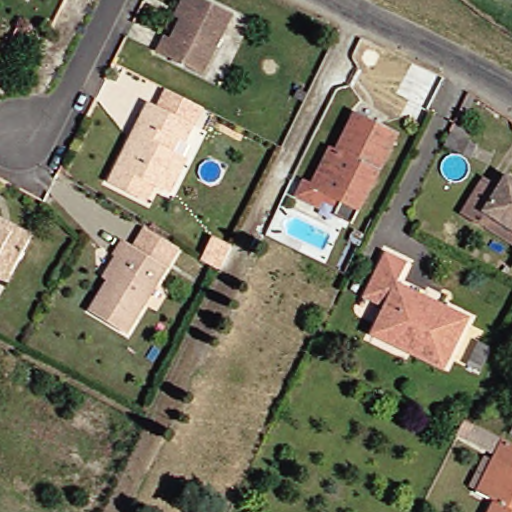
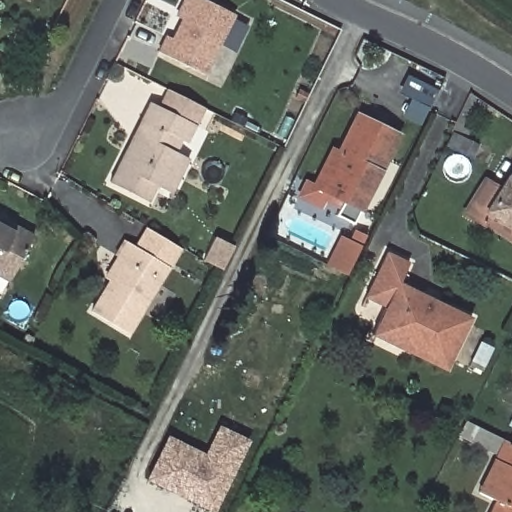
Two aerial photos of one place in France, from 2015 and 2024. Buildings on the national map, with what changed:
unchanged [(227,16),(197,75),(152,52),(159,37),(166,40),(176,20),(170,17),(178,0),(196,0),(227,16)]
unchanged [(158,191),(150,187),(141,203),(102,184),(126,137),(134,121),(142,104),(152,109),(162,91),(197,109),(188,127),(180,144),(175,141),(168,154),(175,157),(182,161),(165,194),(158,191)]
unchanged [(308,208),(287,197),(294,182),(302,186),(321,147),(327,151),(346,115),(387,136),(342,225),(325,216),(328,209),(312,201),(308,208)]
unchanged [(451,134),(477,146),(471,158),(445,146),(451,134)]
unchanged [(512,185),(512,245),(460,212),(479,182),(494,191),(502,179),(512,185)]
unchanged [(345,252),(335,247),(351,215),(361,220),(345,252)]
unchanged [(19,242),(0,277),(0,225),(22,237),(19,242)]
unchanged [(127,247),(139,228),(173,249),(162,268),(121,335),(85,313),(104,281),(99,278),(111,258),(120,243),(127,247)]
unchanged [(390,351),(367,340),(380,312),(360,302),(381,259),(401,268),(391,288),(464,323),(443,365),(439,375),(390,351)]
unchanged [(478,342),(491,348),(480,371),(467,365),(478,342)]
unchanged [(512,422),(512,440),(502,435),(509,420),(512,422)]
new [(171,437),(208,454),(222,425),(251,438),(217,509),(198,500),(200,496),(170,481),(168,486),(152,477),(171,437)]
unchanged [(478,512),(483,500),(467,492),(487,455),(461,442),(467,427),(512,449),(512,512),(478,512)]

